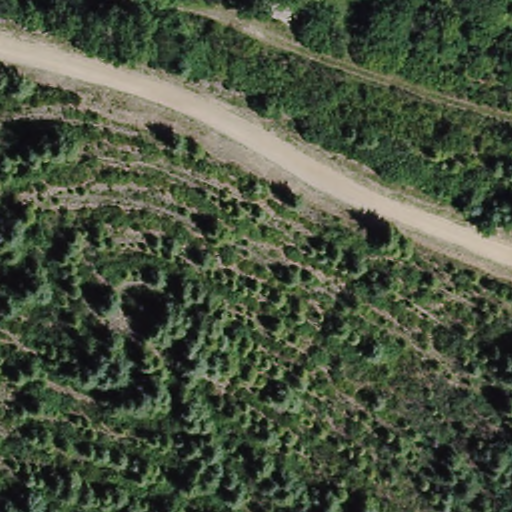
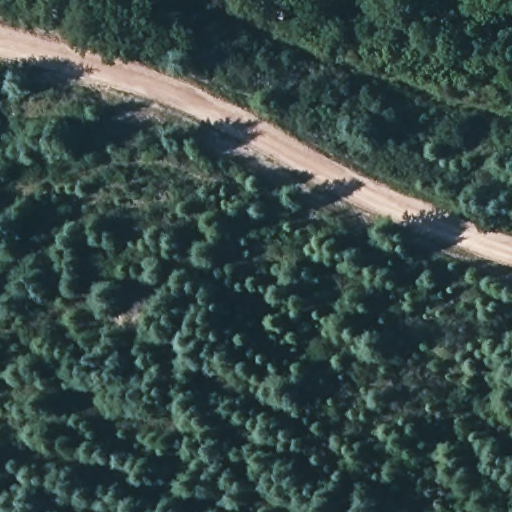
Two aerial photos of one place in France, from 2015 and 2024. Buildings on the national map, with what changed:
unchanged [(289,26),(255,9),(259,0),(301,0),(289,26)]

